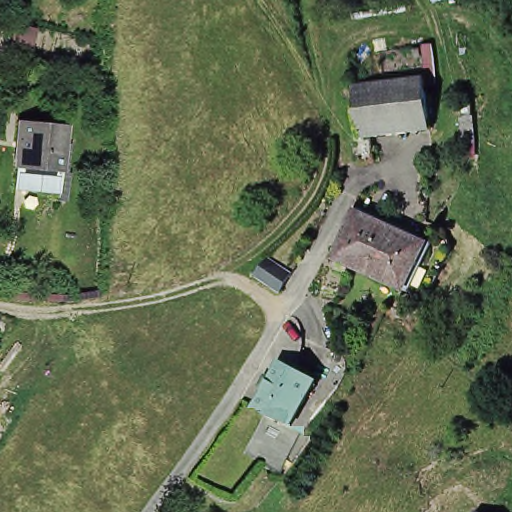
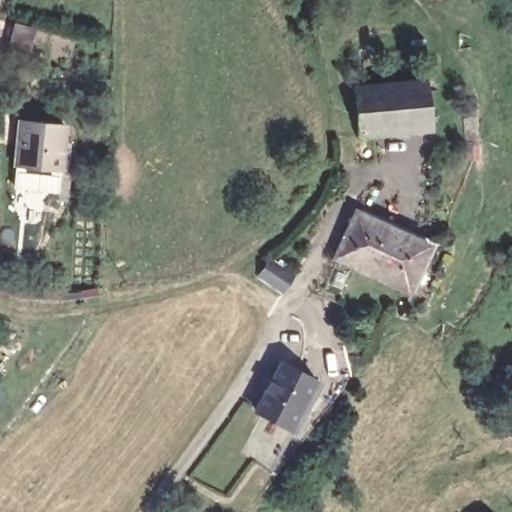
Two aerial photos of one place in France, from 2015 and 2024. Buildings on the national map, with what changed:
unchanged [(432,132),(412,134),(408,100),(362,105),(359,85),(428,79),(432,132)]
unchanged [(362,105),(408,100),(412,134),(376,137),(377,162),(362,162),(360,126),(344,126),(341,86),(359,85),(362,105)]
unchanged [(470,116),(458,117),(456,98),(469,98),(470,116)]
unchanged [(22,186),(25,164),(27,118),(69,121),(63,170),(62,169),(60,189),(22,186)]
unchanged [(418,285),(343,258),(359,214),(434,238),(418,285)]
unchanged [(278,293),(253,282),(263,263),(288,277),(278,293)]
unchanged [(292,436),(254,415),(280,366),(317,385),(292,436)]

